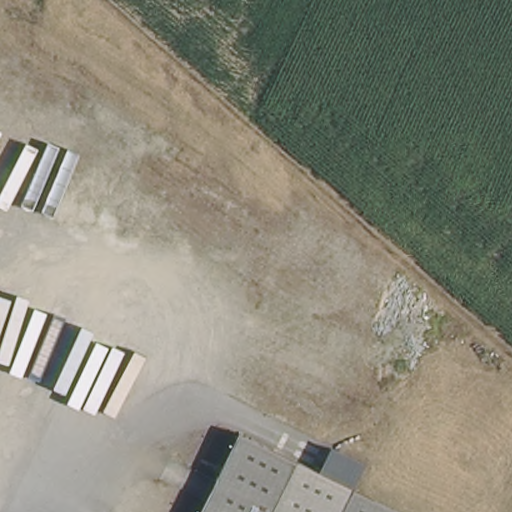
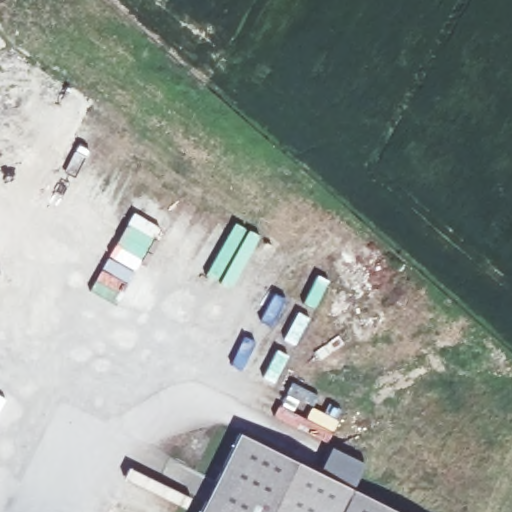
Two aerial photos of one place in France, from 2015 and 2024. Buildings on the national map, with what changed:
unchanged [(391,512),(196,512),(235,435),(391,512)]

